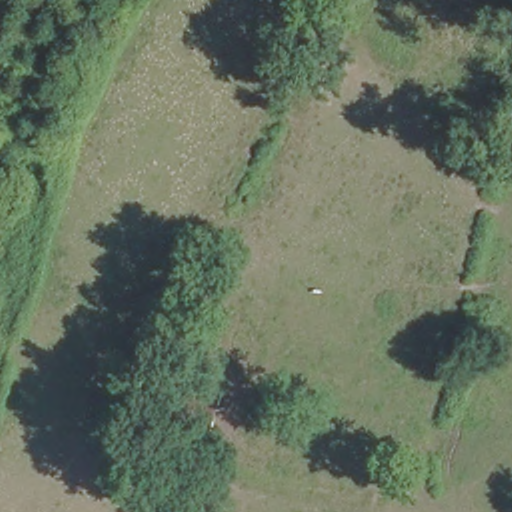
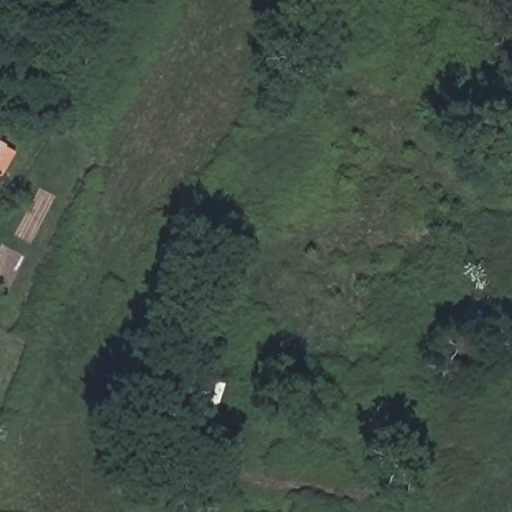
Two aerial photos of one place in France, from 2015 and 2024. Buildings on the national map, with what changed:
new [(17,152),(0,182),(0,142),(17,152)]
unchanged [(165,440),(184,382),(222,394),(203,451),(165,440)]

